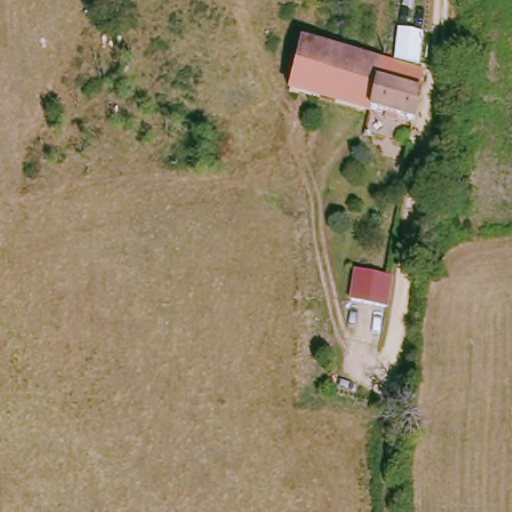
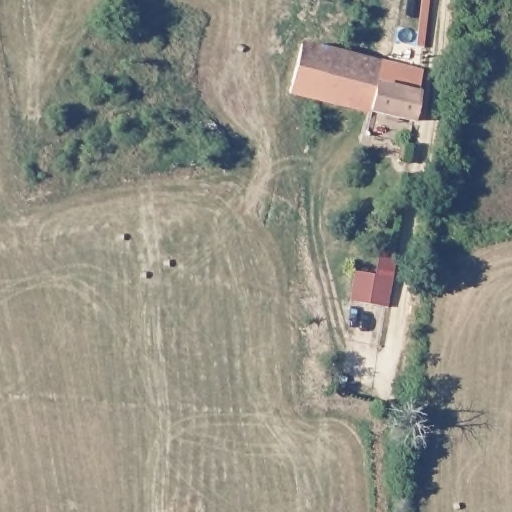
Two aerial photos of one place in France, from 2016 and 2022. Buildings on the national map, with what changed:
unchanged [(293,81),(309,38),(384,66),(379,82),(369,109),(293,81)]
unchanged [(405,123),(369,109),(379,82),(414,93),(405,123)]
unchanged [(389,277),(384,304),(347,297),(350,267),(389,277)]

